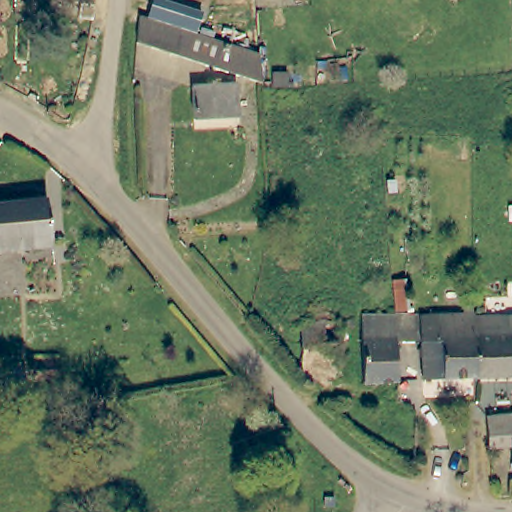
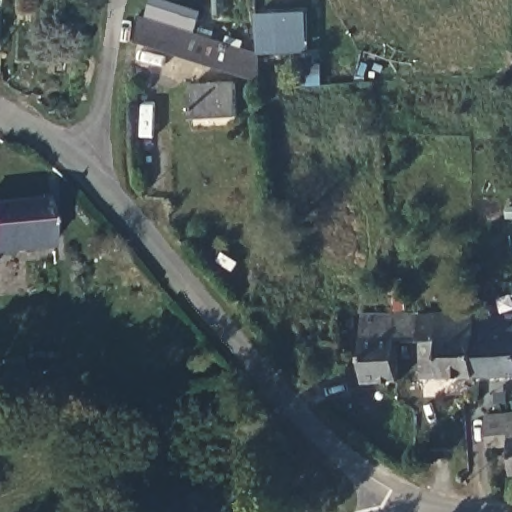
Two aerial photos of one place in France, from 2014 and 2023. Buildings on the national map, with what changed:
unchanged [(175,0),(205,10),(200,24),(154,8),(155,0),(175,0)]
new [(262,54),(257,16),(307,12),(311,52),(262,54)]
unchanged [(141,13),(262,54),(264,85),(185,57),(175,56),(142,44),(141,13)]
unchanged [(240,82),(241,112),(197,114),(196,82),(240,82)]
unchanged [(46,198),(52,246),(0,251),(0,203),(46,198)]
unchanged [(397,316),(423,316),(440,316),(467,316),(467,309),(477,309),(477,319),(478,378),(425,380),(424,341),(414,341),(414,352),(399,352),(399,365),(400,382),(365,383),(366,316),(397,316)]
unchanged [(343,317),(344,340),(304,341),(303,318),(343,317)]
unchanged [(477,319),(512,319),(512,378),(478,378),(477,319)]
unchanged [(508,448),(487,448),(484,418),(512,415),(512,476),(511,476),(508,448)]

